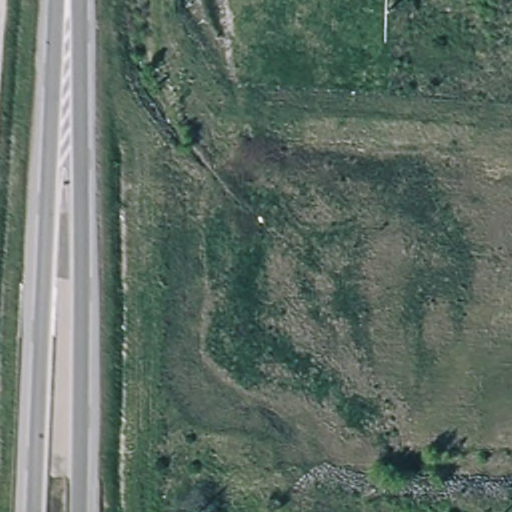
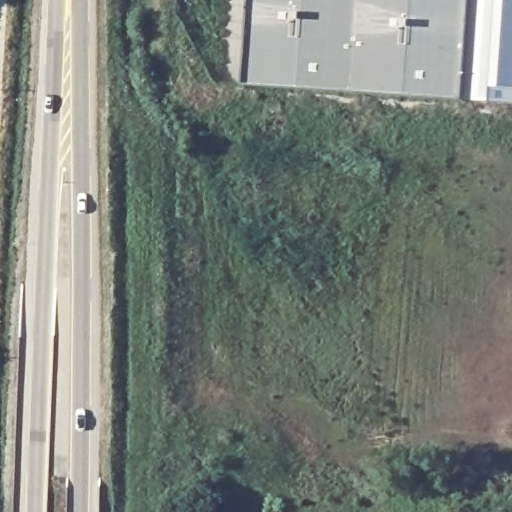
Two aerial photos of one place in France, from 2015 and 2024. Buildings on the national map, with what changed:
new [(462,101),(242,86),(249,0),(468,0),(462,101)]
new [(468,0),(512,0),(512,104),(462,101),(468,0)]
unchanged [(212,499),(203,498),(204,491),(213,492),(212,499)]

